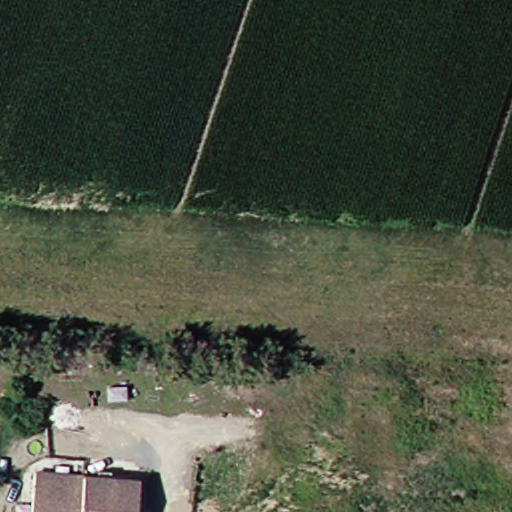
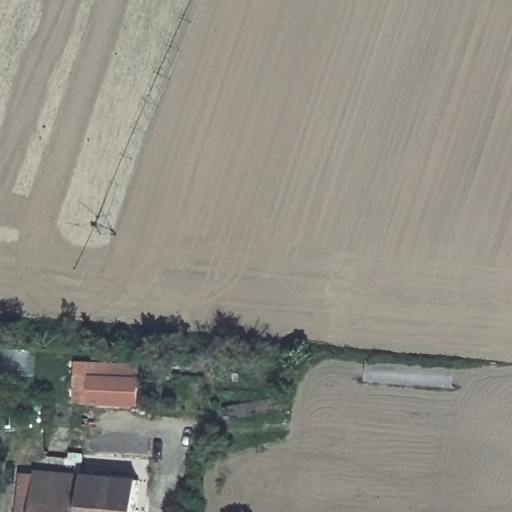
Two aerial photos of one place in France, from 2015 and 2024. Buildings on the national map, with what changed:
new [(75,361),(141,363),(139,406),(74,404),(75,361)]
unchanged [(111,484),(133,486),(131,512),(28,512),(31,478),(83,481),(111,484)]

